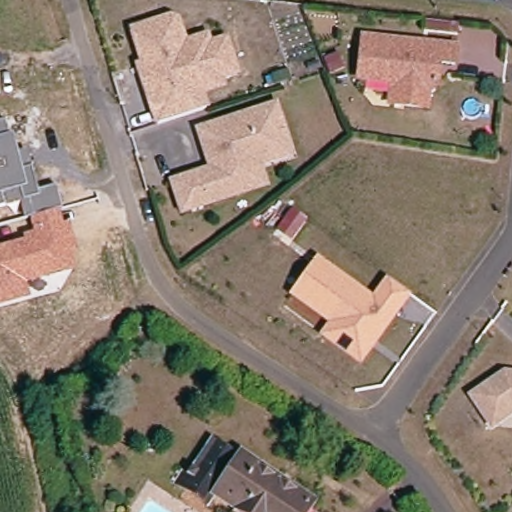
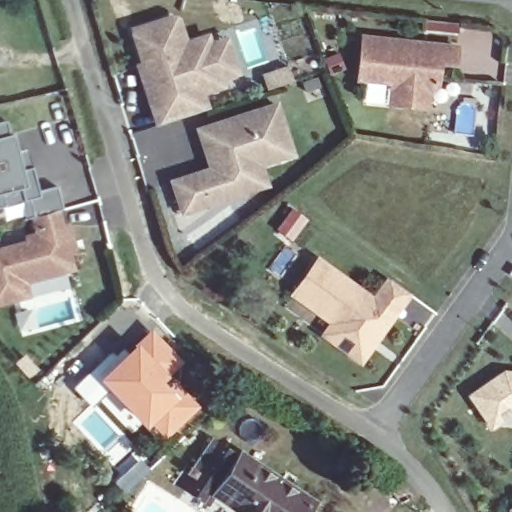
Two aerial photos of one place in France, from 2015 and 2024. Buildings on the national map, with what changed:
unchanged [(145,66),(133,32),(172,20),(178,26),(185,47),(208,40),(211,48),(227,43),(238,75),(221,80),(223,88),(201,95),(207,111),(168,124),(159,126),(149,96),(140,68),(145,66)]
unchanged [(361,35),(461,45),(458,68),(441,65),(440,87),(432,87),(431,112),(398,109),(386,100),(387,86),(356,81),(361,35)]
unchanged [(242,195),(183,214),(173,184),(212,171),(203,143),(199,132),(217,127),(277,107),(293,157),(261,167),(267,187),(242,195)]
unchanged [(359,108),(365,122),(351,128),(346,114),(359,108)]
unchanged [(7,134),(13,132),(18,150),(27,149),(38,189),(55,185),(64,223),(71,220),(79,249),(71,252),(75,268),(25,282),(29,295),(0,303),(0,245),(23,240),(22,235),(33,232),(28,216),(24,217),(20,201),(0,207),(0,121),(5,120),(7,134)]
unchanged [(372,294),(386,274),(412,295),(361,366),(318,334),(326,322),(287,294),(316,255),(372,294)]
new [(65,274),(68,288),(31,298),(27,284),(65,274)]
new [(88,372),(96,380),(152,327),(185,363),(171,376),(185,390),(146,427),(145,429),(106,391),(90,407),(71,387),(88,372)]
unchanged [(512,377),(512,416),(492,430),(470,401),(503,377),(512,377)]
new [(185,390),(199,406),(160,442),(146,427),(185,390)]
unchanged [(313,507),(310,512),(228,512),(211,501),(207,509),(174,487),(180,479),(185,481),(210,445),(236,463),(241,458),(313,507)]
new [(139,457),(150,469),(124,494),(112,481),(139,457)]
new [(507,510),(512,507),(512,512),(509,512),(507,510)]

